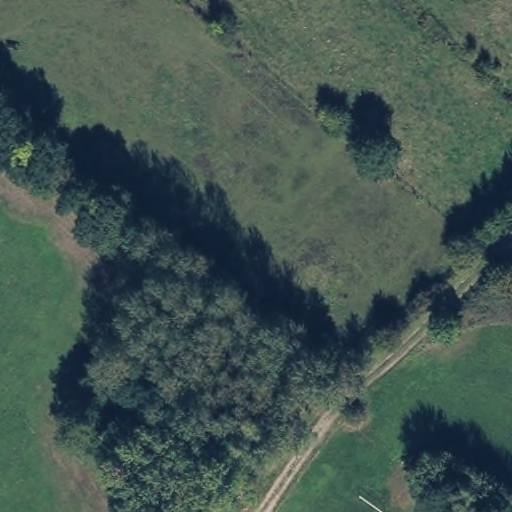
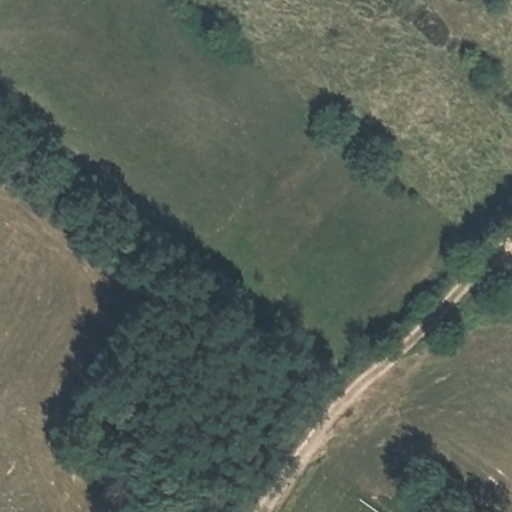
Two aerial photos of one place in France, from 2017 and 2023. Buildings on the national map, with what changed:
[]

